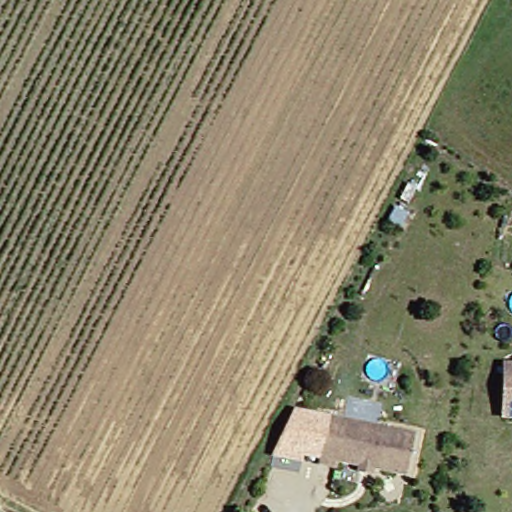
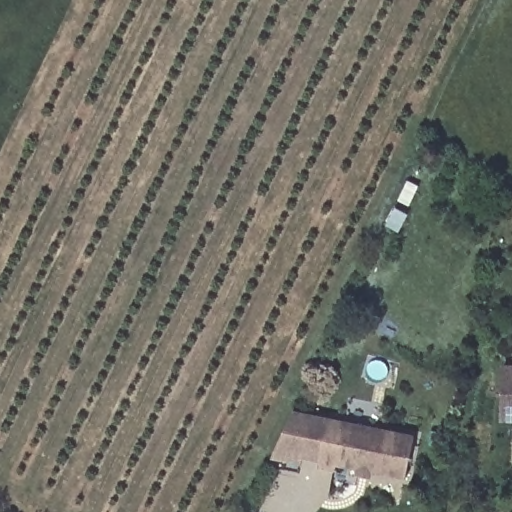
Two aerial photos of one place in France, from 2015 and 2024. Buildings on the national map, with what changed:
unchanged [(512,364),(512,420),(490,420),(492,364),(512,364)]
unchanged [(405,433),(397,476),(328,461),(327,467),(309,462),(320,415),(405,433)]

